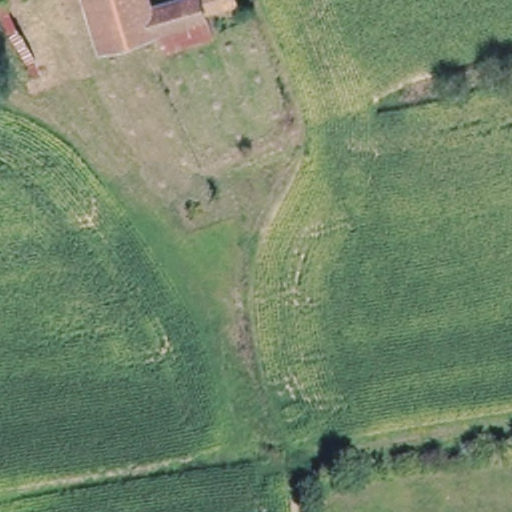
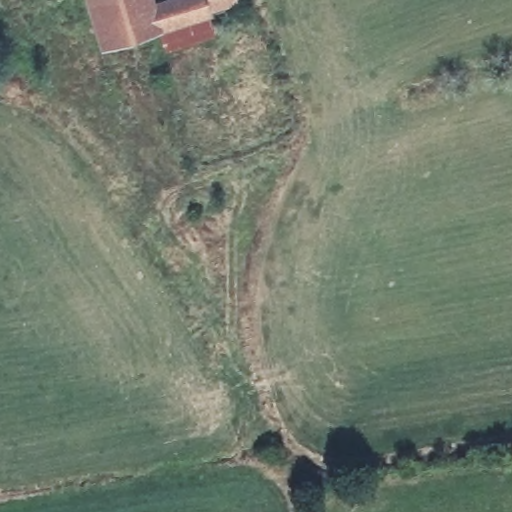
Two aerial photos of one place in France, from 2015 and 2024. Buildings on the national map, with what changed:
unchanged [(161,0),(200,0),(203,6),(156,22),(97,43),(83,0),(142,0),(143,5),(161,0)]
unchanged [(200,0),(236,0),(209,9),(217,28),(166,47),(156,22),(203,6),(200,0)]

